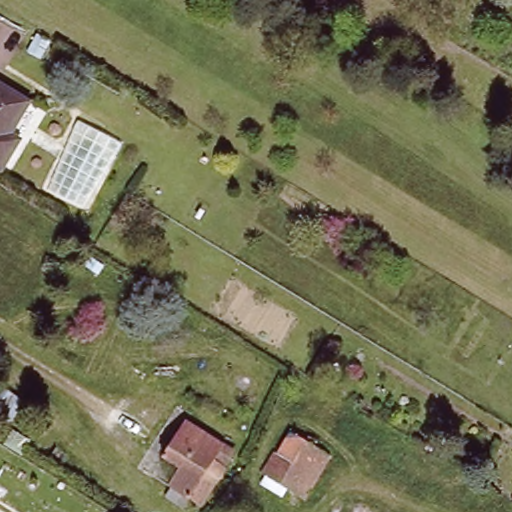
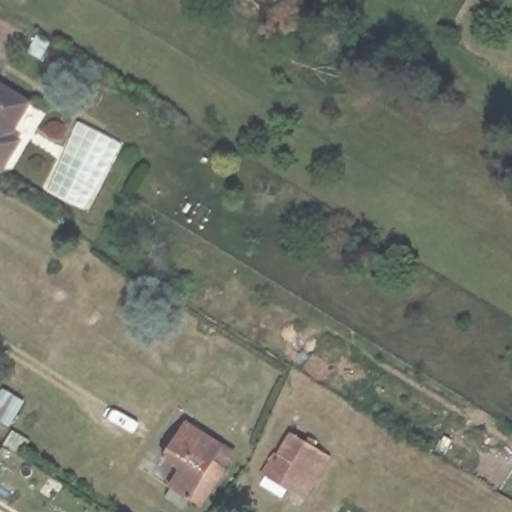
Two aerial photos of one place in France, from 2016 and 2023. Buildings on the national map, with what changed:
unchanged [(17,141),(0,169),(0,88),(26,105),(14,125),(8,135),(17,141)]
unchanged [(214,445),(226,459),(228,460),(229,463),(228,466),(216,460),(192,500),(173,488),(183,470),(157,454),(178,419),(208,437),(214,445)]
unchanged [(259,476),(273,455),(276,456),(289,435),(304,443),(306,438),(313,441),(309,446),(283,491),(259,476)]
unchanged [(328,458),(301,502),(283,491),(309,446),(328,458)]

